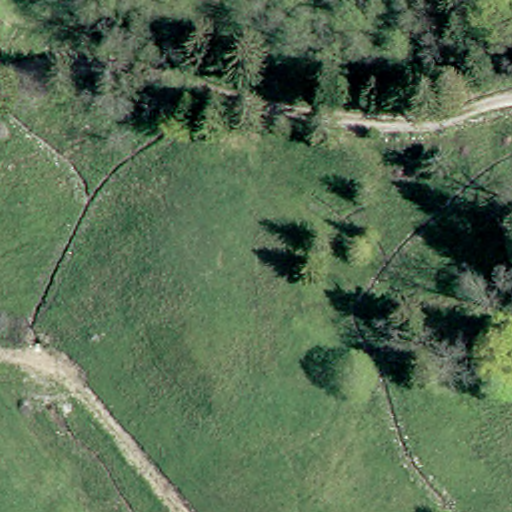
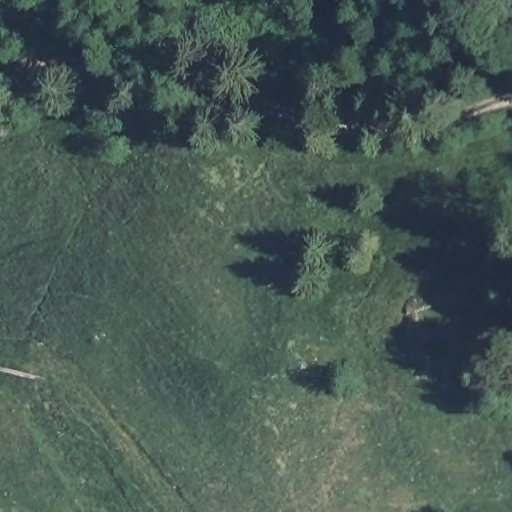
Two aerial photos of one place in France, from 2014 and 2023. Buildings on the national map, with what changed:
[]

